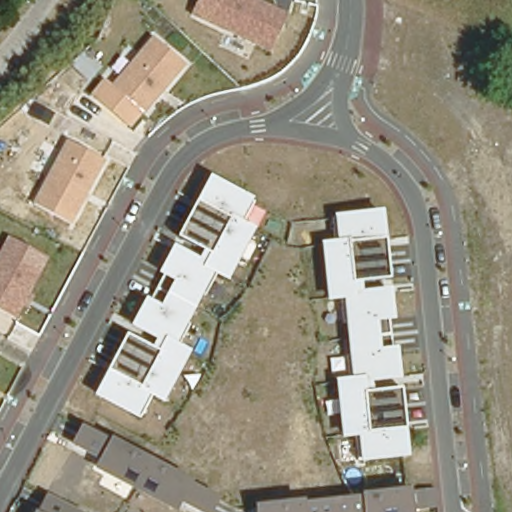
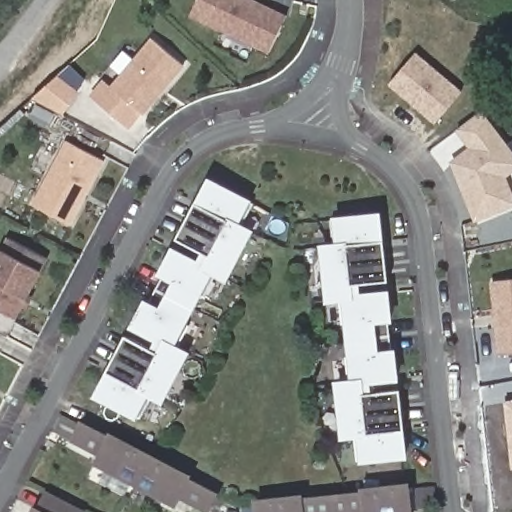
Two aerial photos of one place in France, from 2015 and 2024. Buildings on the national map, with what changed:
unchanged [(270,51),(190,15),(197,0),(256,0),(287,15),(270,51)]
unchanged [(92,94),(104,78),(114,85),(154,38),(187,65),(133,129),(92,94)]
new [(389,84),(416,51),(463,91),(435,123),(389,84)]
new [(56,80),(76,91),(65,113),(37,98),(56,80)]
new [(508,177),(512,185),(512,206),(474,223),(450,161),(467,150),(457,129),(486,110),(512,146),(512,174),(508,177)]
unchanged [(74,226),(34,205),(66,139),(107,160),(74,226)]
unchanged [(243,223),(255,230),(229,282),(215,275),(179,343),(192,351),(164,403),(150,395),(137,419),(95,397),(211,177),(255,198),(243,223)]
unchanged [(412,458),(360,465),(357,439),(341,440),(335,381),(350,379),(342,302),(326,303),(319,243),(335,242),(332,215),(385,210),(412,458)]
unchanged [(0,309),(0,254),(9,237),(49,258),(18,319),(0,309)]
new [(512,278),(512,352),(498,353),(490,280),(512,278)]
new [(512,400),(512,470),(505,401),(512,400)]
unchanged [(216,512),(200,512),(183,505),(180,512),(179,512),(94,470),(99,460),(72,447),(81,427),(222,499),(216,512)]
unchanged [(257,512),(256,506),(411,487),(415,512),(257,512)]
unchanged [(82,512),(36,512),(44,493),(82,512)]

